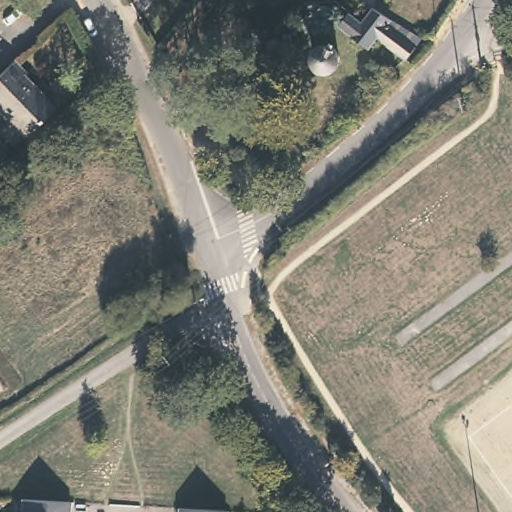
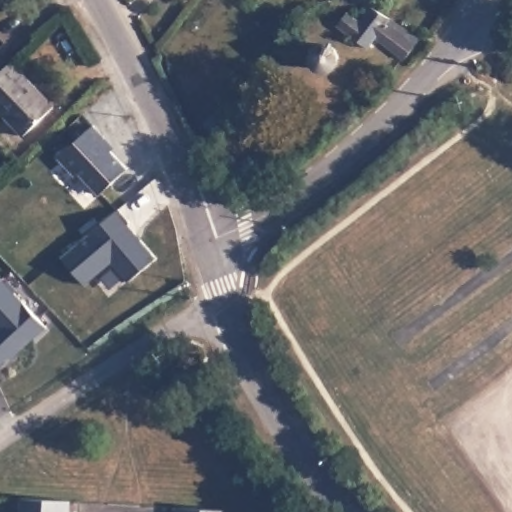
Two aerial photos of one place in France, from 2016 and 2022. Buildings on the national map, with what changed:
unchanged [(361,29),(366,24),(372,27),(377,31),(391,14),(435,50),(419,70),(392,49),(383,59),(354,36),(361,29)]
unchanged [(0,39),(0,38),(1,39),(0,39)]
unchanged [(329,44),(331,45),(333,45),(334,46),(335,47),(337,48),(338,50),(339,51),(339,52),(339,54),(340,55),(340,57),(339,59),(339,60),(339,62),(338,64),(337,65),(336,66),(335,67),(334,69),(332,69),(330,70),(329,70),(328,70),(325,70),(324,70),(323,70),(321,69),(319,68),(318,67),(317,66),(316,65),(315,64),(314,62),(314,60),(314,59),(314,57),(314,55),(314,54),(314,52),(315,50),(316,49),(317,48),(319,47),(319,46),(321,45),(323,45),(324,44),(326,44),(328,44),(329,44)]
unchanged [(28,82),(59,115),(28,143),(0,113),(0,83),(19,65),(30,78),(28,82)]
new [(100,195),(83,174),(77,177),(58,158),(93,125),(115,147),(109,152),(126,169),(100,195)]
new [(130,280),(115,261),(87,284),(63,257),(118,213),(155,256),(130,280)]
new [(6,360),(0,365),(0,280),(44,326),(13,360),(6,360)]
unchanged [(16,510),(21,510),(22,494),(71,496),(70,512),(16,512),(16,510)]
unchanged [(179,508),(227,510),(226,512),(179,512),(179,508)]

